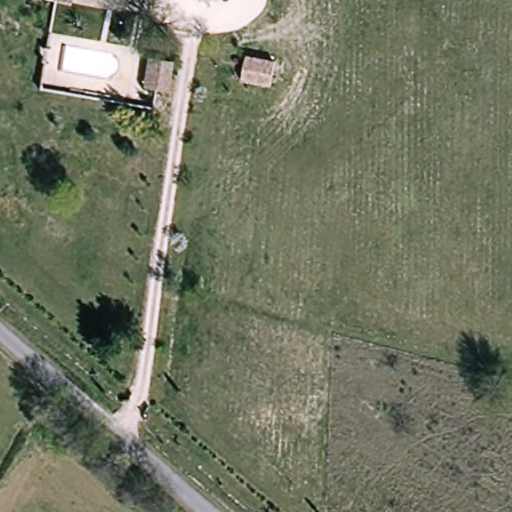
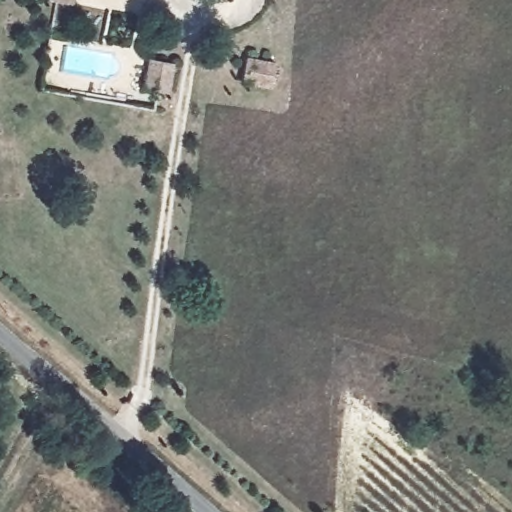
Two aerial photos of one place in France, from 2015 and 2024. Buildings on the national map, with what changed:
unchanged [(170,93),(145,88),(152,54),(177,58),(170,93)]
unchanged [(275,61),(272,85),(241,79),(247,55),(275,61)]

